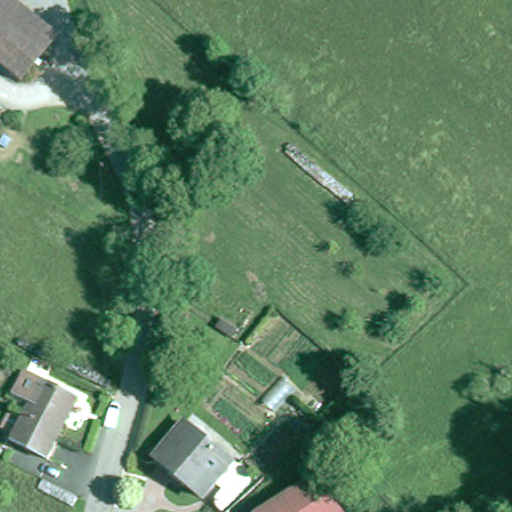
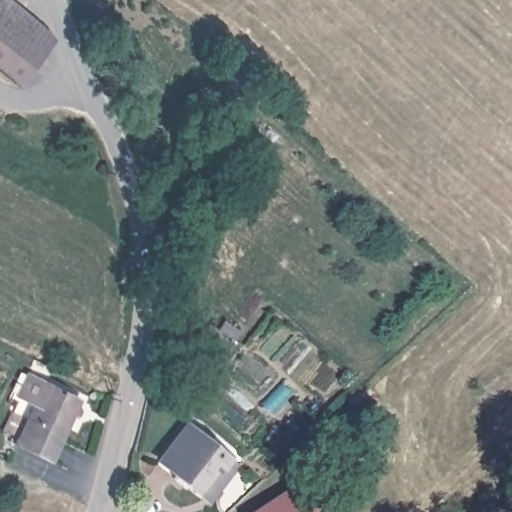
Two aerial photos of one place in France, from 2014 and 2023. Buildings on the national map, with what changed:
unchanged [(0,71),(0,0),(8,0),(58,40),(20,88),(0,71)]
unchanged [(92,408),(63,469),(27,452),(32,444),(19,438),(34,406),(31,405),(42,383),(92,408)]
unchanged [(190,429),(237,469),(209,503),(161,464),(190,429)]
unchanged [(322,477),(344,512),(266,512),(322,477)]

